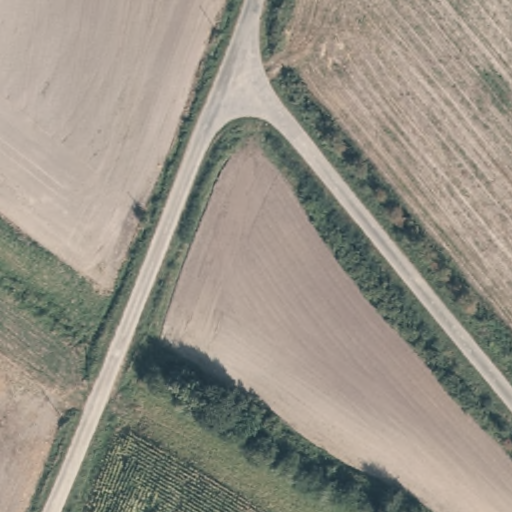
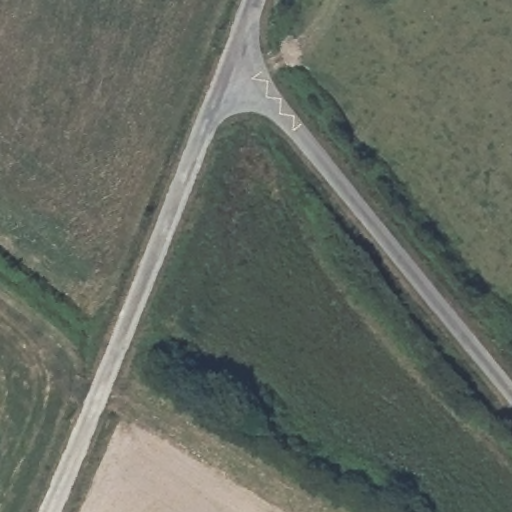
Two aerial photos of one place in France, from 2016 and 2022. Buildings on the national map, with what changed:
[]

